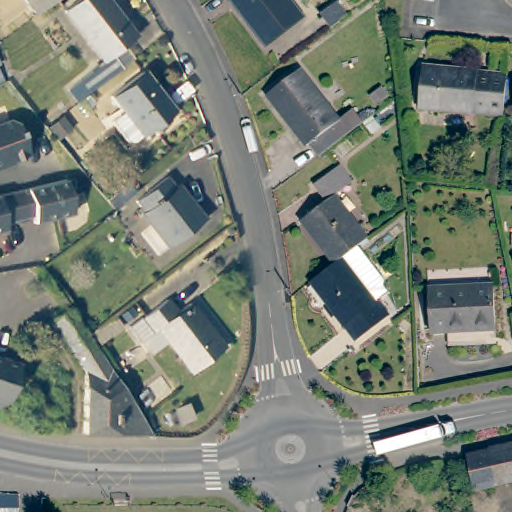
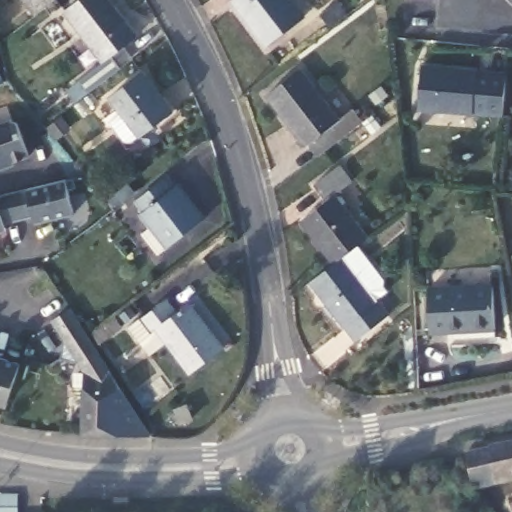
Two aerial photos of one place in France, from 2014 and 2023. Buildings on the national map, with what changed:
unchanged [(35,16),(23,0),(55,0),(35,16)]
unchanged [(104,64),(65,12),(80,0),(107,0),(137,39),(124,49),(133,61),(121,69),(90,94),(79,102),(70,90),(80,82),(104,64)]
unchanged [(304,17),(267,47),(232,1),(233,0),(291,0),(304,17)]
unchanged [(330,27),(321,15),(336,2),(345,15),(330,27)]
unchanged [(422,67),(506,75),(502,117),(418,109),(422,67)]
unchanged [(115,93),(147,68),(178,107),(146,132),(145,131),(136,138),(130,137),(115,117),(127,108),(115,93)]
unchanged [(322,157),(313,145),(311,147),(272,95),(305,70),(342,120),(356,109),(367,123),(322,157)]
unchanged [(0,82),(0,74),(3,80),(0,82)]
unchanged [(0,163),(0,118),(5,116),(12,120),(24,152),(0,161),(1,163),(0,163)]
unchanged [(334,196),(367,239),(357,246),(343,257),(342,258),(333,265),(300,222),(325,202),(313,187),(337,168),(350,184),(334,196)]
unchanged [(175,188),(177,187),(204,220),(167,248),(141,215),(143,213),(135,202),(167,177),(175,188)]
unchanged [(35,225),(33,217),(4,224),(6,231),(0,232),(0,197),(65,181),(73,215),(35,225)]
unchanged [(106,200),(114,194),(122,204),(115,210),(106,200)]
unchanged [(357,246),(384,281),(383,286),(387,292),(376,300),(388,316),(355,342),(345,327),(344,328),(310,283),(333,265),(342,258),(343,257),(357,246)]
unchanged [(429,290),(492,287),(493,329),(430,332),(429,290)]
unchanged [(138,318),(144,314),(145,316),(170,297),(180,310),(194,300),(229,344),(195,369),(171,337),(154,351),(144,337),(150,333),(138,318)]
unchanged [(53,312),(58,308),(70,301),(150,427),(84,423),(85,361),(53,312)]
unchanged [(122,318),(100,335),(91,325),(113,308),(122,318)]
unchanged [(46,347),(35,331),(31,325),(50,313),(64,337),(46,347)]
unchanged [(0,409),(0,370),(14,390),(10,403),(0,409)]
unchanged [(488,452),(488,451),(512,445),(512,482),(473,491),(467,457),(488,452)]

